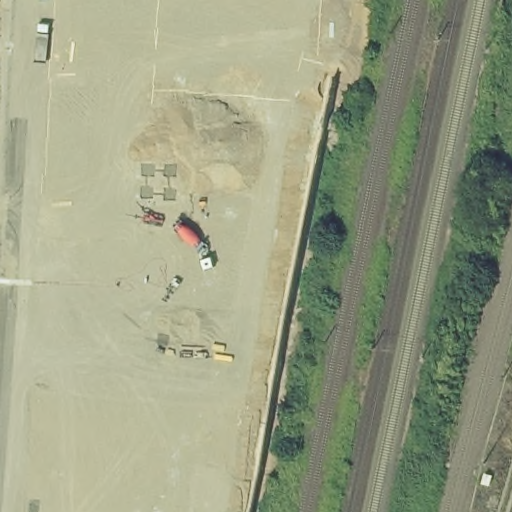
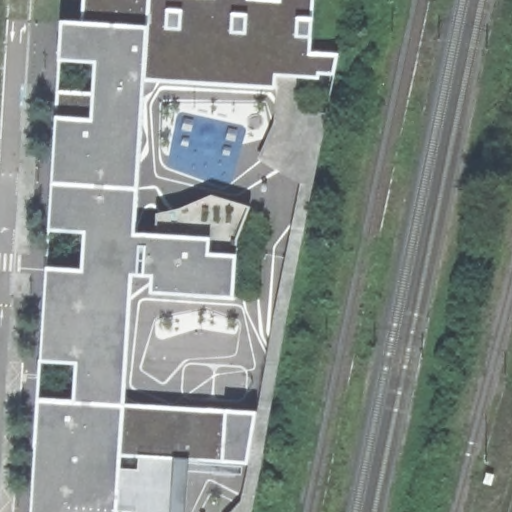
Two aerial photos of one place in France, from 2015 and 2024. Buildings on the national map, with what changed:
new [(83,0),(119,0),(118,0),(148,2),(148,0),(184,0),(183,4),(213,6),(214,0),(249,0),(249,9),(278,10),(279,0),(314,0),(311,53),(338,56),(335,76),(320,75),(319,80),(296,79),(303,112),(326,114),(285,319),(260,468),(251,512),(237,512),(240,502),(248,465),(189,462),(186,512),(31,512),(61,23),(81,24),(83,0)]

